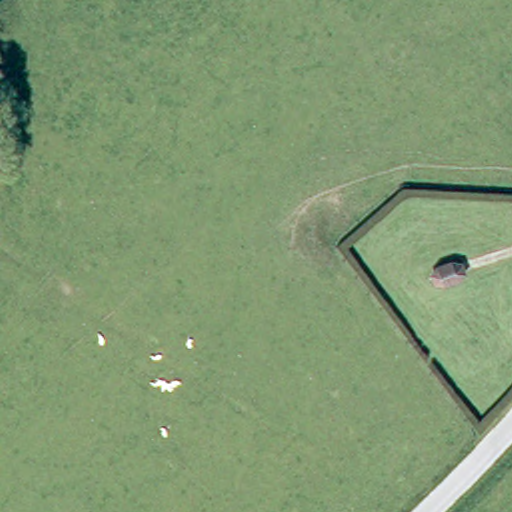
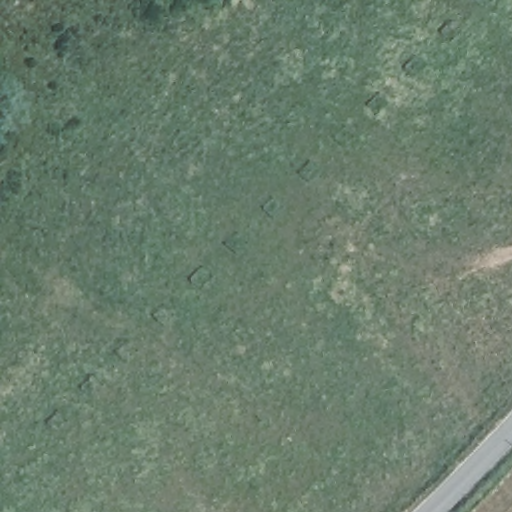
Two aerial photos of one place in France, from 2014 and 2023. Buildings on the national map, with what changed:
unchanged [(440,268),(455,263),(465,265),(466,274),(462,280),(446,285),(438,284),(435,275),(440,268)]

